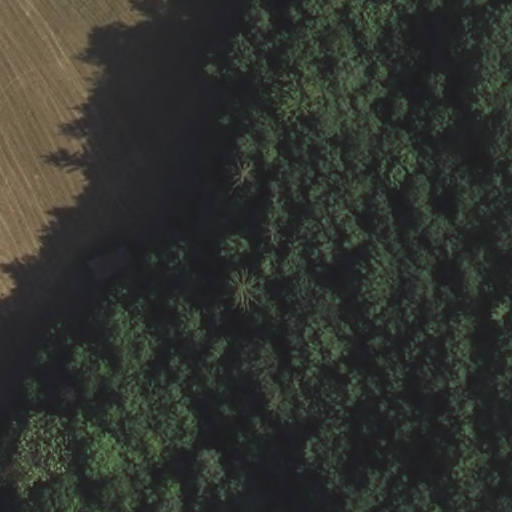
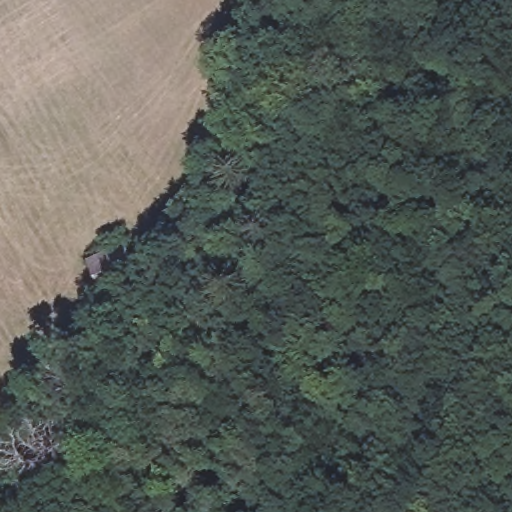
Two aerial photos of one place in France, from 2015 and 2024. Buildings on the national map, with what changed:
unchanged [(139,278),(103,298),(87,261),(127,242),(139,278)]

